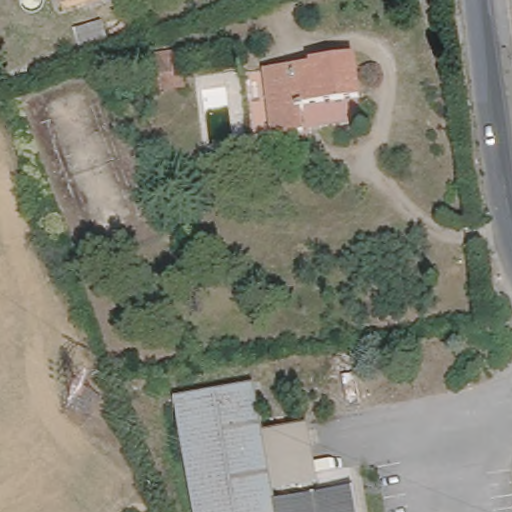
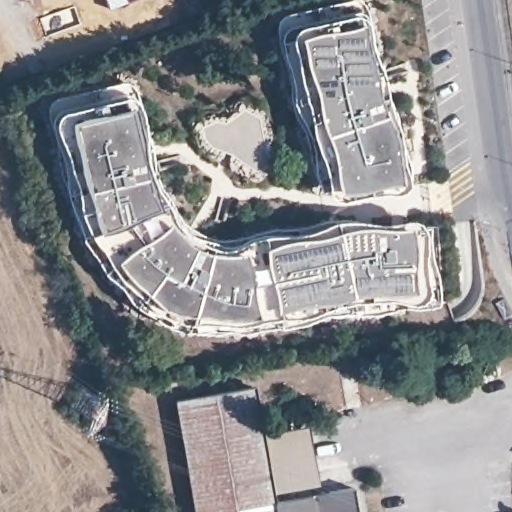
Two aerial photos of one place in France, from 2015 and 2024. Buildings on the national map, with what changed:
unchanged [(63,7),(60,0),(83,0),(63,7)]
unchanged [(106,3),(105,0),(115,0),(106,3)]
new [(293,20),(319,14),(319,7),(350,0),(354,0),(363,2),(364,20),(387,96),(409,188),(329,203),(280,34),(293,20)]
demolished [(315,64),(314,61),(357,55),(362,95),(304,103),(306,129),(278,132),(269,70),(315,64)]
demolished [(146,70),(171,67),(173,84),(148,87),(146,70)]
new [(139,106),(143,117),(143,134),(141,150),(148,171),(169,209),(164,214),(181,227),(187,222),(210,234),(237,237),(259,227),(334,216),(336,231),(354,312),(289,324),(256,328),(211,330),(182,325),(177,335),(128,296),(104,273),(84,237),(68,196),(47,115),(48,106),(54,97),(124,82),(128,82),(132,85),(139,106)]
new [(336,231),(334,216),(344,216),(359,217),(374,220),(390,220),(401,216),(412,216),(418,220),(433,222),(434,271),(437,291),(436,301),(428,305),(416,305),(411,305),(403,303),(395,304),(383,307),(369,310),(354,310),(336,231)]
unchanged [(254,387),(263,435),(274,495),(275,505),(351,491),(355,512),(197,512),(177,401),(254,387)]
unchanged [(306,427),(317,486),(274,495),(263,435),(306,427)]

